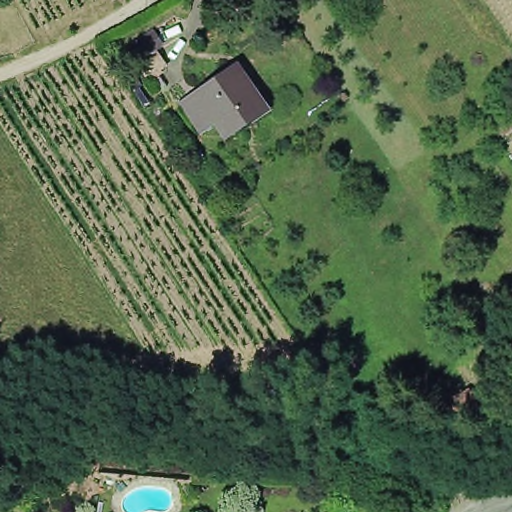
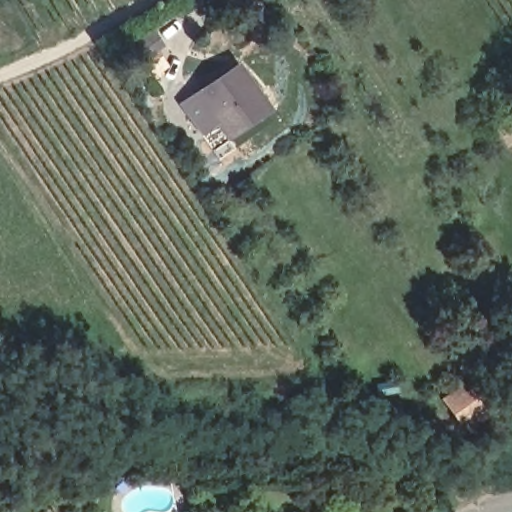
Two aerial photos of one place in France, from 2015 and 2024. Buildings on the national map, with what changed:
unchanged [(262,99),(242,113),(247,119),(232,130),(220,115),(204,127),(187,104),(239,68),(262,99)]
unchanged [(482,408),(486,417),(478,421),(472,409),(459,416),(450,401),(466,393),(477,411),(482,408)]

